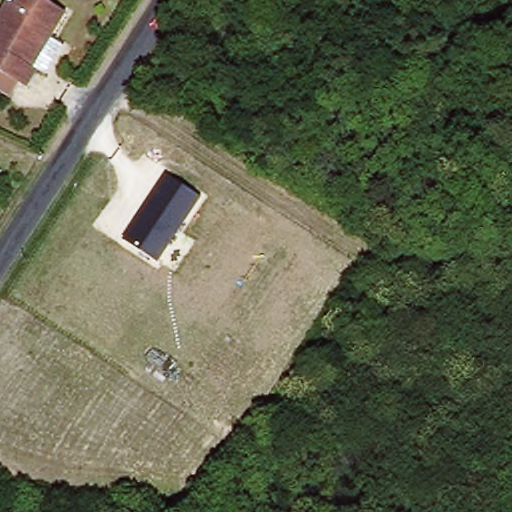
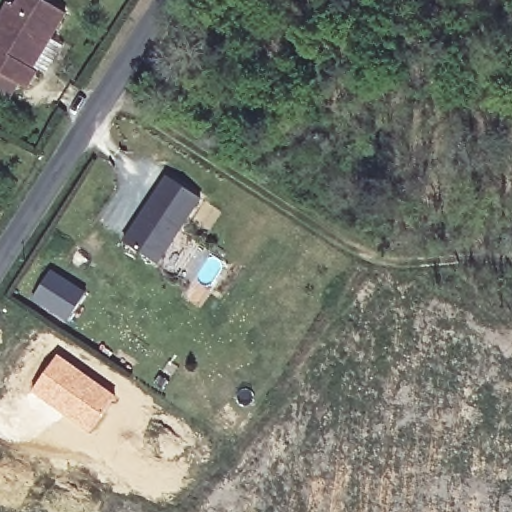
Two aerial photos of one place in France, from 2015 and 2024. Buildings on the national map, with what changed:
unchanged [(10,0),(44,0),(61,10),(42,41),(36,37),(17,68),(25,73),(16,87),(7,82),(0,95),(0,9),(4,12),(10,0)]
unchanged [(202,200),(160,265),(124,242),(166,177),(202,200)]
new [(50,268),(87,292),(67,323),(30,298),(50,268)]
new [(57,353),(116,397),(90,433),(30,391),(57,353)]

